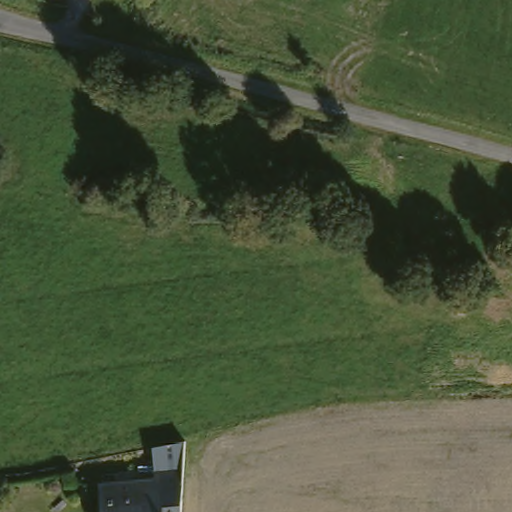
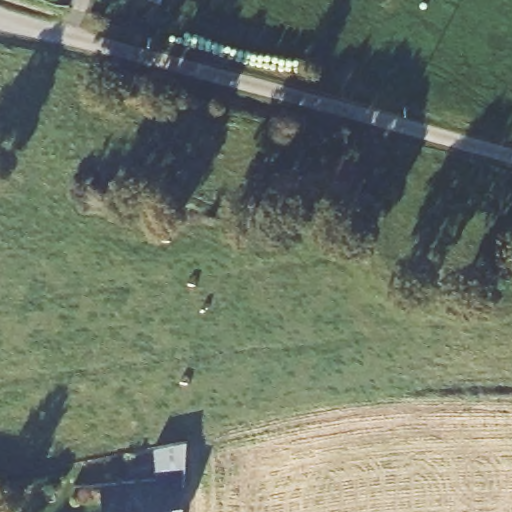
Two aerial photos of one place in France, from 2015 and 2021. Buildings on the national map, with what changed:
unchanged [(159,479),(156,447),(189,441),(184,512),(106,512),(103,483),(159,479)]

